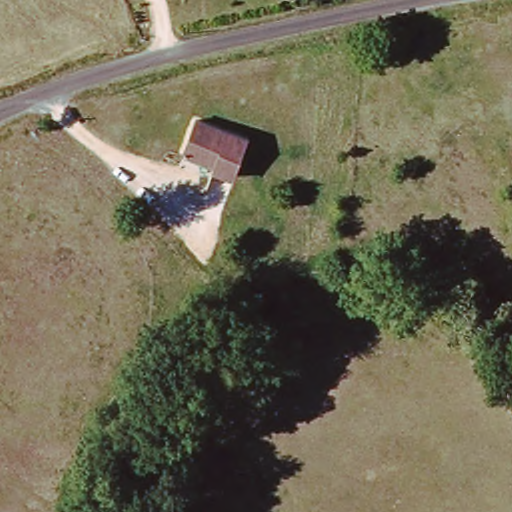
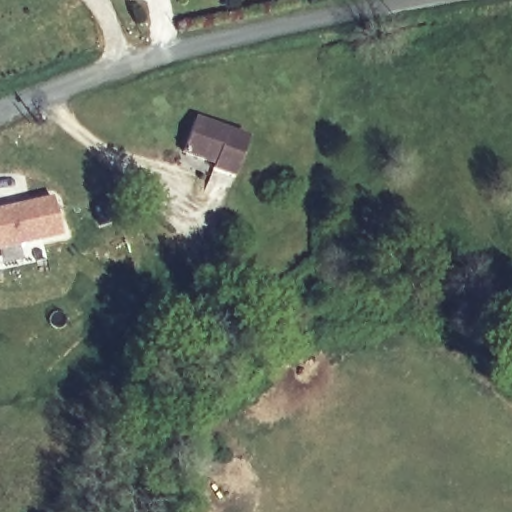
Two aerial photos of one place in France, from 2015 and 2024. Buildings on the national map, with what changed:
unchanged [(214,165),(181,154),(190,125),(244,144),(231,180),(212,172),(214,165)]
new [(61,237),(0,252),(0,209),(52,197),(61,237)]

